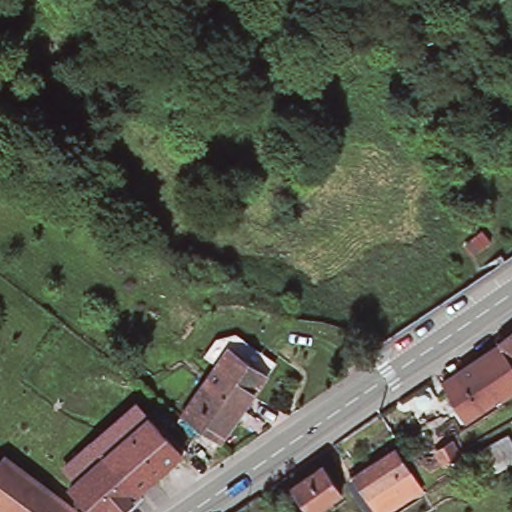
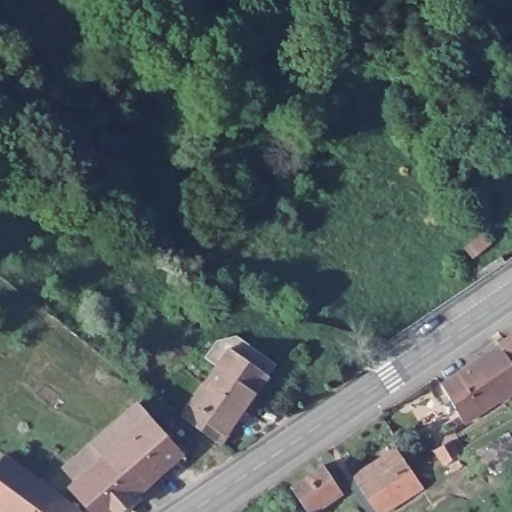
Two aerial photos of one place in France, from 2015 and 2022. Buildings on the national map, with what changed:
unchanged [(482,407),(467,418),(462,411),(442,380),(501,341),(512,333),(512,387),(490,402),(482,407)]
unchanged [(239,335),(259,348),(279,360),(271,372),(255,395),(246,409),(208,380),(231,346),(239,335)]
unchanged [(208,380),(246,409),(223,441),(184,414),(208,380)]
unchanged [(117,436),(146,413),(185,460),(156,483),(124,445),(117,436)]
unchanged [(509,432),(512,438),(512,458),(488,473),(476,452),(509,432)]
unchanged [(442,438),(461,466),(434,485),(414,457),(442,438)]
unchanged [(387,443),(398,460),(371,478),(375,482),(368,488),(364,483),(355,490),(344,473),(387,443)]
unchanged [(93,512),(72,485),(79,480),(68,465),(80,455),(92,470),(124,445),(156,483),(119,512),(93,512)]
unchanged [(27,474),(75,512),(0,512),(0,460),(4,455),(27,474)]
unchanged [(368,488),(375,482),(371,478),(398,460),(403,467),(425,498),(406,512),(371,512),(355,490),(364,483),(368,488)]
unchanged [(341,491),(313,512),(308,512),(291,487),(322,464),(341,491)]

